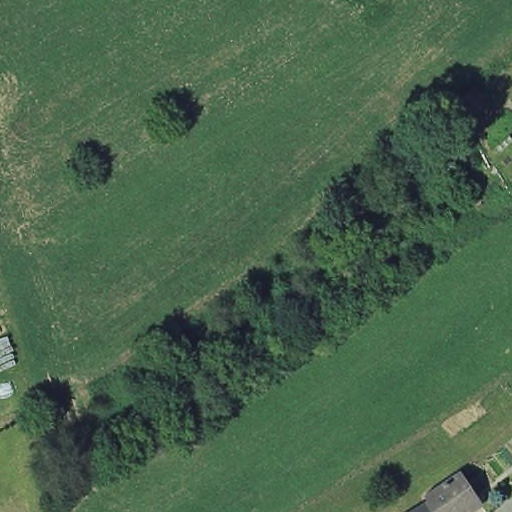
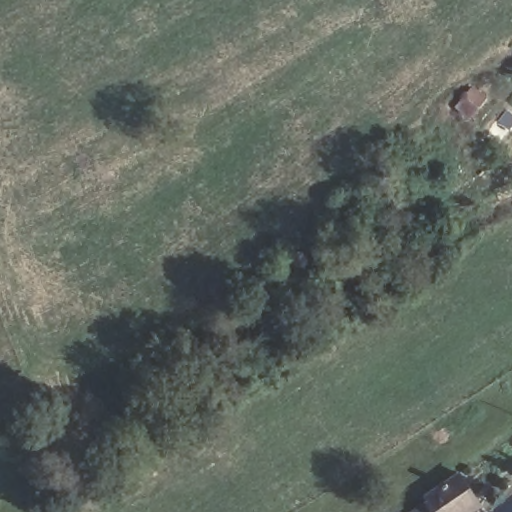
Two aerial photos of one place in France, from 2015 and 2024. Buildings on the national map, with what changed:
unchanged [(428,491),(427,489),(424,484),(453,464),(457,470),(472,493),(444,512),(395,512),(428,491)]

